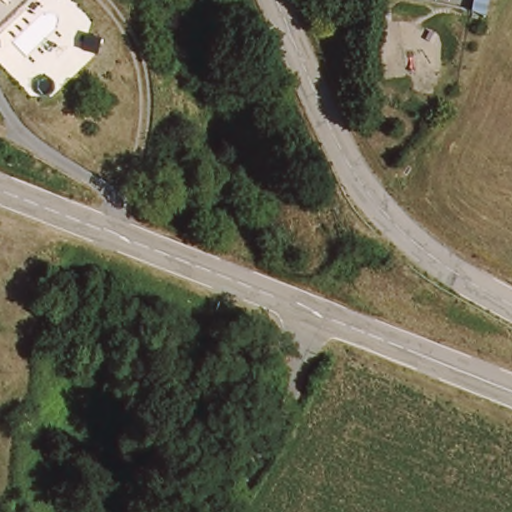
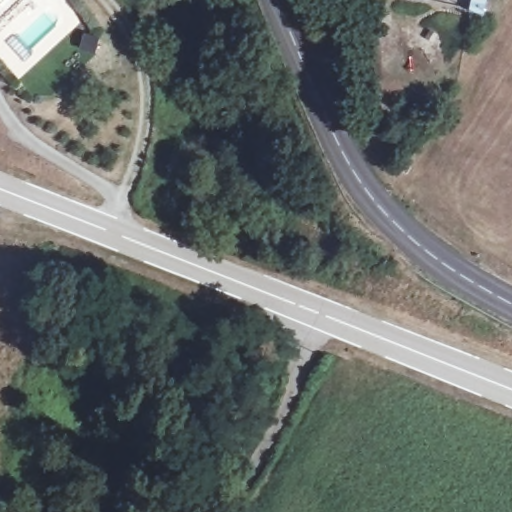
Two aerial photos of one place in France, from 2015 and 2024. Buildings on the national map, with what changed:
unchanged [(472,0),(482,0),(480,12),(470,9),(472,0)]
unchanged [(84,28),(96,32),(92,48),(80,44),(84,28)]

